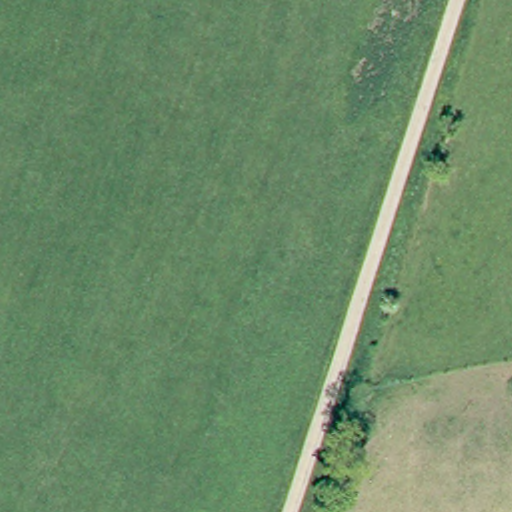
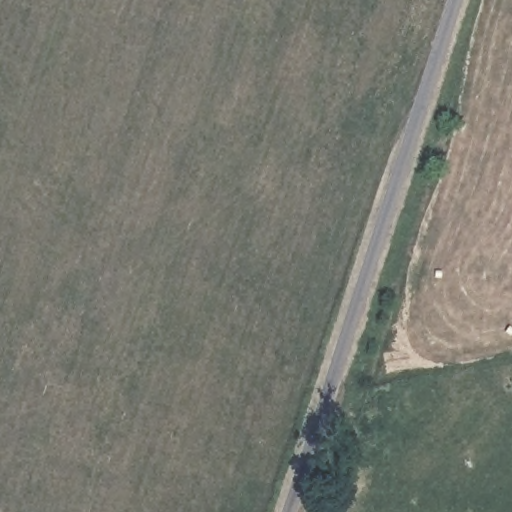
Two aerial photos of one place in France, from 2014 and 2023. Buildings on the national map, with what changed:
[]

